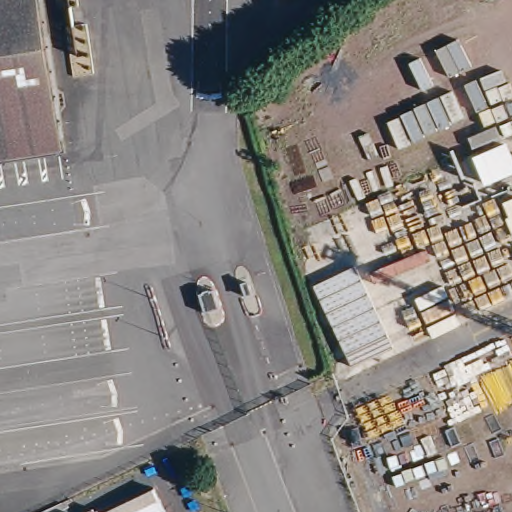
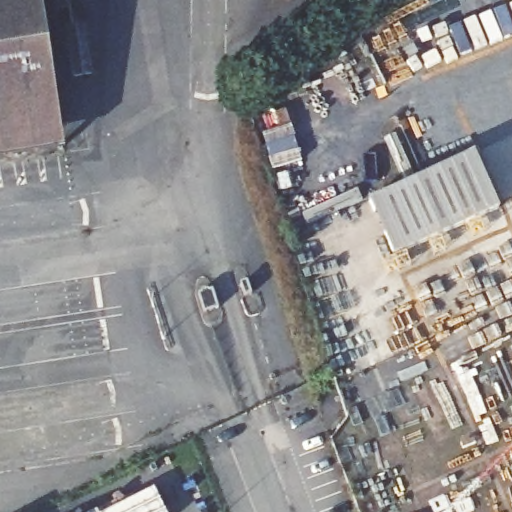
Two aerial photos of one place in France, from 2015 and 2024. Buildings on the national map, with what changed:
unchanged [(67,149),(0,160),(0,0),(41,0),(67,149)]
new [(393,256),(368,200),(475,153),(500,209),(393,256)]
unchanged [(165,512),(103,512),(155,490),(165,512)]
unchanged [(97,512),(91,512),(96,510),(97,512)]

